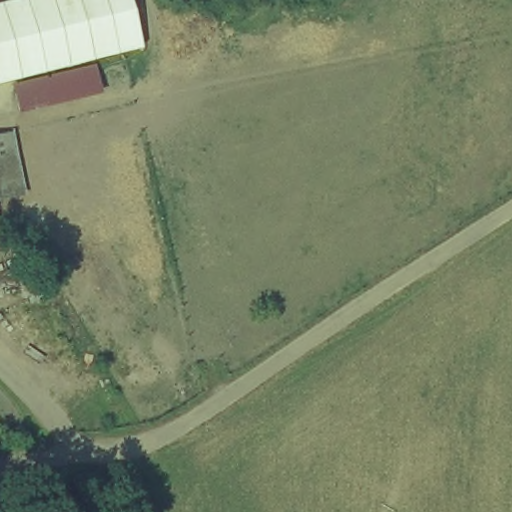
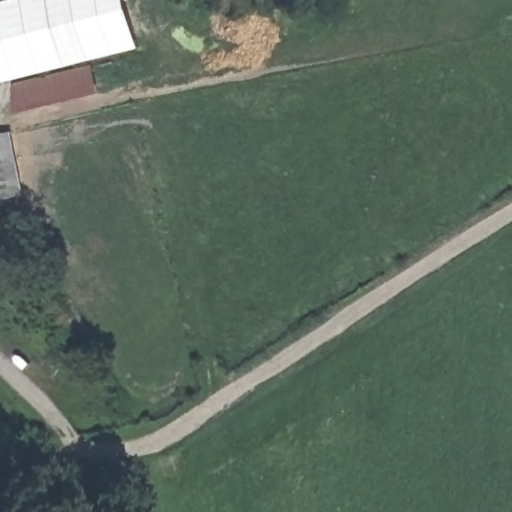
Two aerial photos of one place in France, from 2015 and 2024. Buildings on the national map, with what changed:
unchanged [(103,94),(22,115),(15,84),(0,88),(0,4),(15,0),(133,0),(145,49),(95,62),(103,94)]

